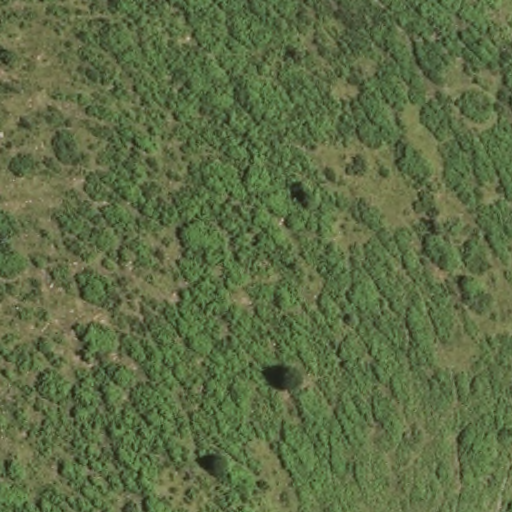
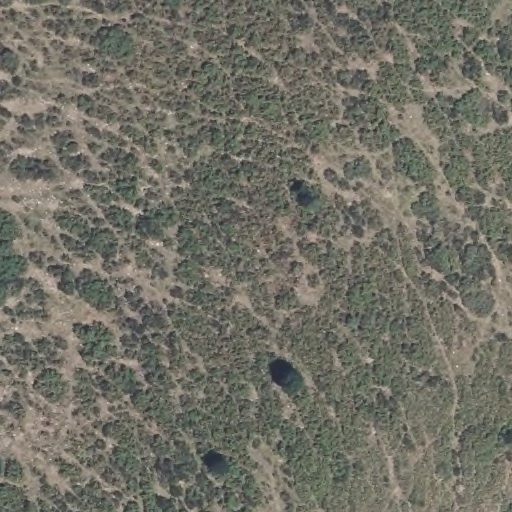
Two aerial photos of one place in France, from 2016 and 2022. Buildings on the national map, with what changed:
[]

